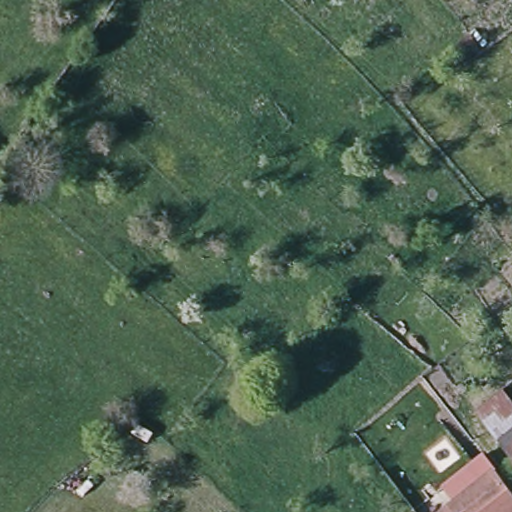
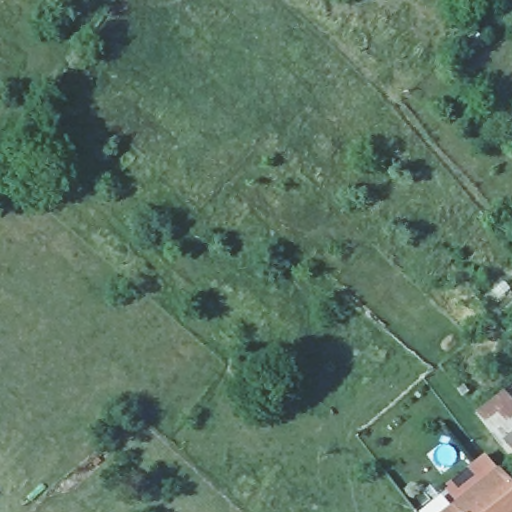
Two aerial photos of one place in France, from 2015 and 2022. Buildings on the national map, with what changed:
unchanged [(461,385),(468,394),(462,398),(456,389),(461,385)]
unchanged [(502,391),(512,403),(512,439),(502,448),(474,413),(502,391)]
unchanged [(502,448),(512,439),(512,461),(502,448)]
unchanged [(462,500),(477,488),(497,472),(512,492),(512,512),(447,512),(462,500)]

